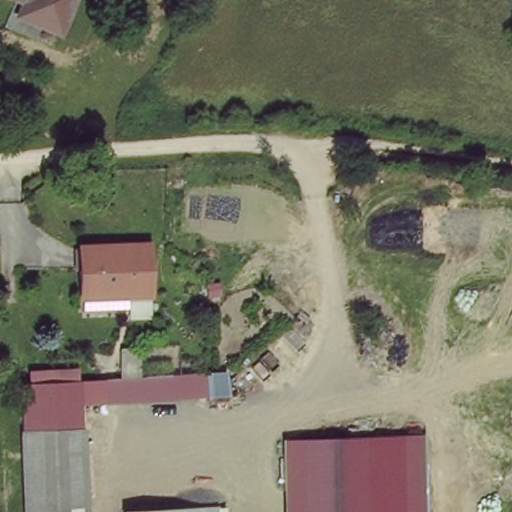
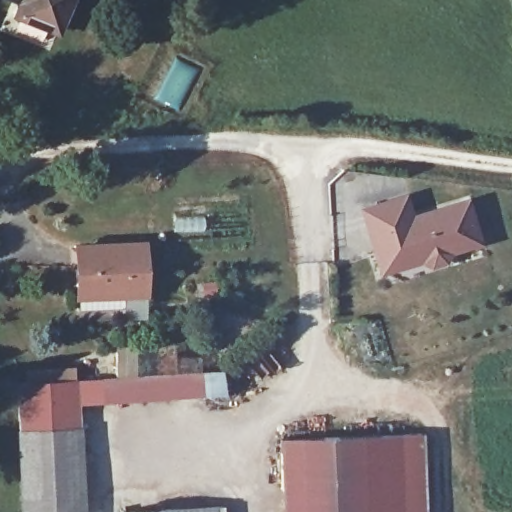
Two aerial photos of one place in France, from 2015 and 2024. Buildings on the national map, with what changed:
unchanged [(23,12),(24,0),(72,0),(70,17),(23,12)]
new [(406,192),(413,214),(469,197),(482,245),(451,255),(446,265),(432,270),(420,264),(379,276),(358,206),(406,192)]
unchanged [(148,297),(85,301),(83,251),(145,249),(148,297)]
unchanged [(100,375),(220,367),(222,395),(103,398),(100,375)]
unchanged [(100,375),(103,398),(78,399),(78,431),(21,433),(20,377),(100,375)]
unchanged [(21,433),(78,431),(82,512),(23,512),(21,433)]
unchanged [(279,438),(422,432),(425,512),(281,512),(279,438)]

